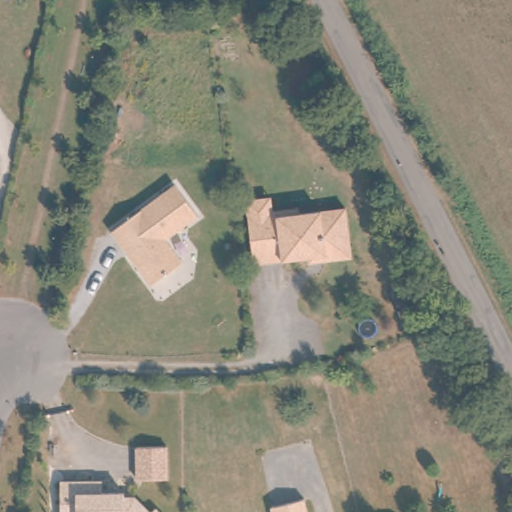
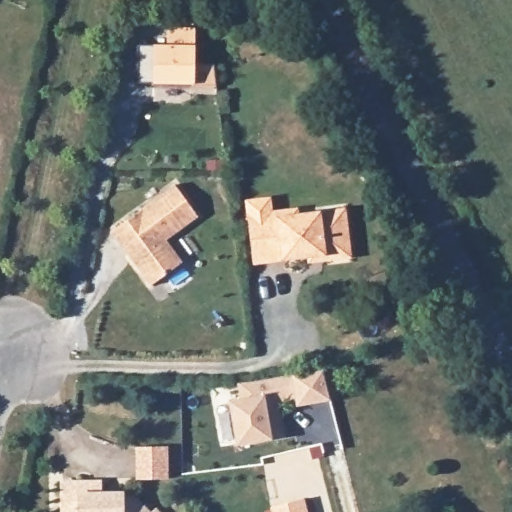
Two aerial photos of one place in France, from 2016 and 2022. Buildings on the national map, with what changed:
new [(194,86),(194,84),(151,83),(136,82),(137,43),(152,43),(166,44),(165,26),(195,27),(195,45),(195,63),(214,63),(216,86),(194,86)]
unchanged [(110,229),(175,183),(196,215),(164,238),(180,261),(149,283),(110,229)]
unchanged [(247,199),(272,196),(274,210),(300,207),(300,213),(347,207),(353,257),(327,260),(326,254),(255,263),(250,219),(247,199)]
new [(277,437),(237,444),(230,401),(242,399),(239,382),(266,380),(307,372),(322,369),(330,399),(297,404),(296,397),(275,401),(278,420),(281,436),(277,437)]
unchanged [(166,481),(136,481),(135,449),(165,448),(166,481)]
unchanged [(61,490),(91,490),(104,490),(102,501),(120,502),(120,507),(135,508),(139,512),(61,512),(61,490)]
unchanged [(304,506),(306,512),(280,512),(304,506)]

